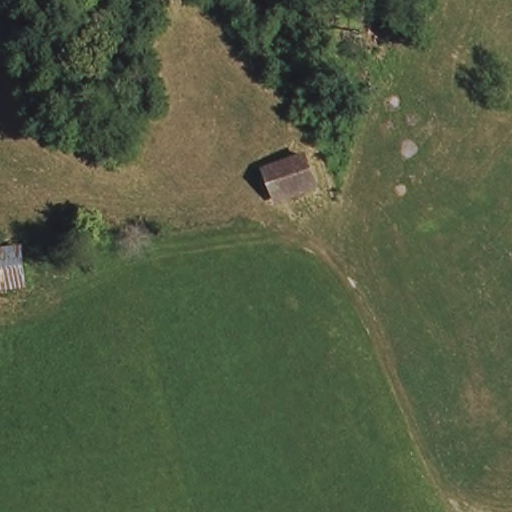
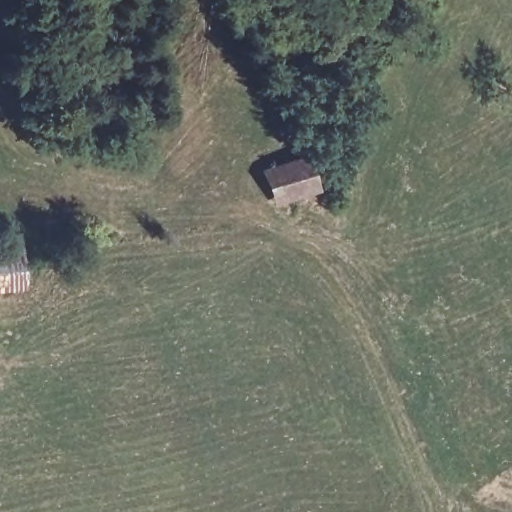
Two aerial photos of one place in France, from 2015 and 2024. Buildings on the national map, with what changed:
unchanged [(302,159),(312,188),(277,201),(267,172),(302,159)]
unchanged [(17,257),(17,292),(0,292),(0,258),(17,257)]

